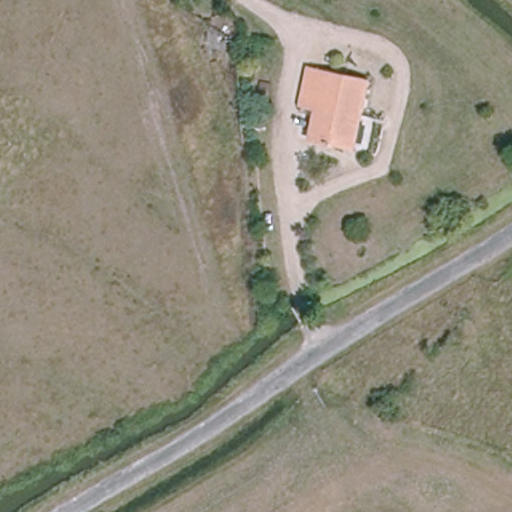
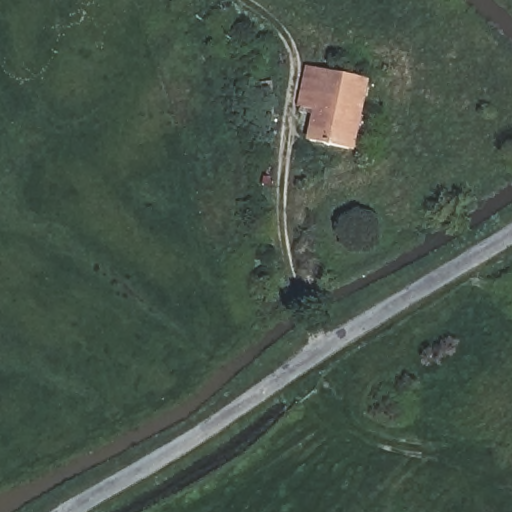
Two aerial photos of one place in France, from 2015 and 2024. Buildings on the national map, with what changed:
unchanged [(354,149),(309,141),(315,110),(302,106),(308,68),(371,80),(354,149)]

